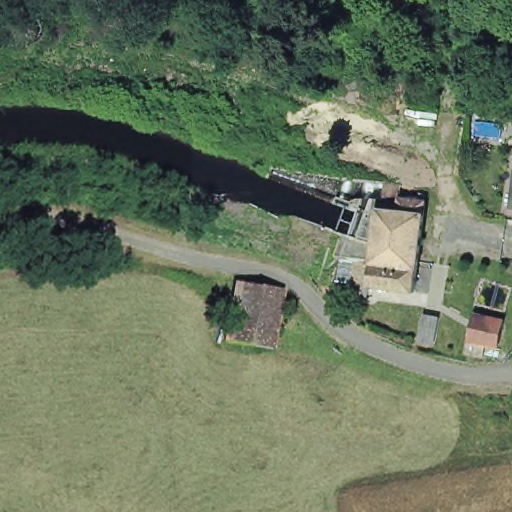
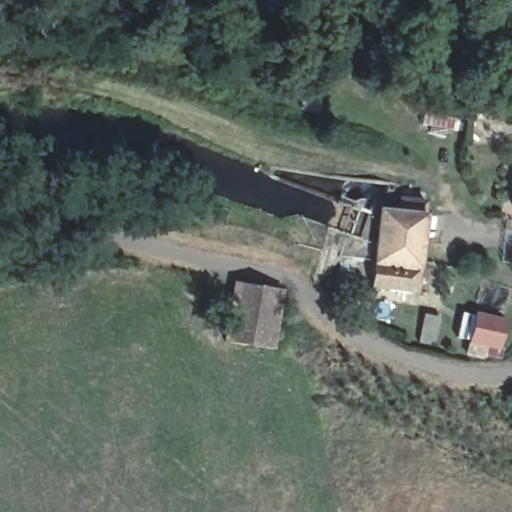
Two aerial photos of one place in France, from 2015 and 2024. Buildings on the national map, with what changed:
unchanged [(355,292),(348,291),(348,283),(348,281),(358,286),(360,267),(370,267),(365,257),(360,255),(362,249),(347,243),(358,211),(380,217),(368,251),(375,260),(377,261),(378,254),(382,219),(383,215),(402,217),(403,206),(403,204),(430,206),(426,235),(422,268),(422,273),(420,298),(373,292),(366,299),(355,297),(355,292)]
unchanged [(281,288),(271,350),(223,342),(231,279),(281,288)]
unchanged [(413,307),(432,312),(425,342),(412,338),(407,337),(413,307)]
unchanged [(460,347),(463,336),(471,316),(473,311),(502,317),(500,326),(493,343),(480,340),(477,352),(460,347)]

